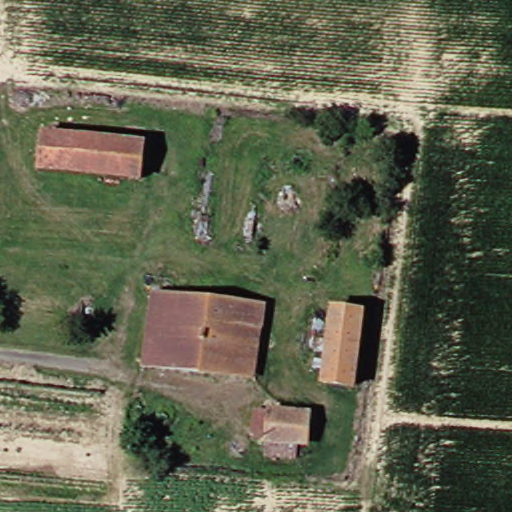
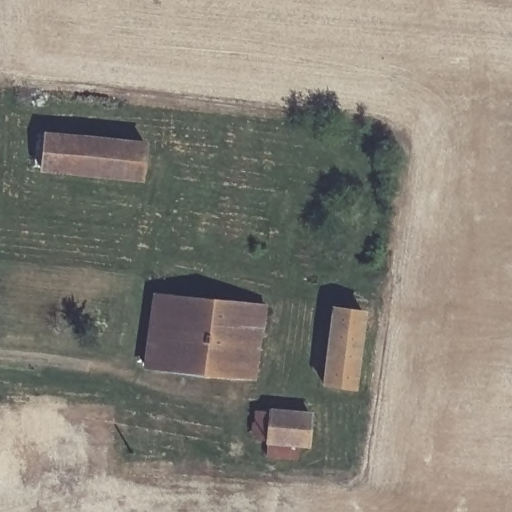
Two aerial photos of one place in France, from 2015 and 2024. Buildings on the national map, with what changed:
unchanged [(144,142),(141,174),(43,165),(46,132),(144,142)]
unchanged [(147,362),(152,291),(232,300),(230,355),(170,350),(170,365),(147,362)]
unchanged [(170,350),(230,355),(232,300),(262,301),(255,371),(170,365),(170,350)]
unchanged [(360,386),(332,383),(336,309),(364,312),(360,386)]
unchanged [(312,441),(275,435),(276,407),(315,411),(312,441)]

